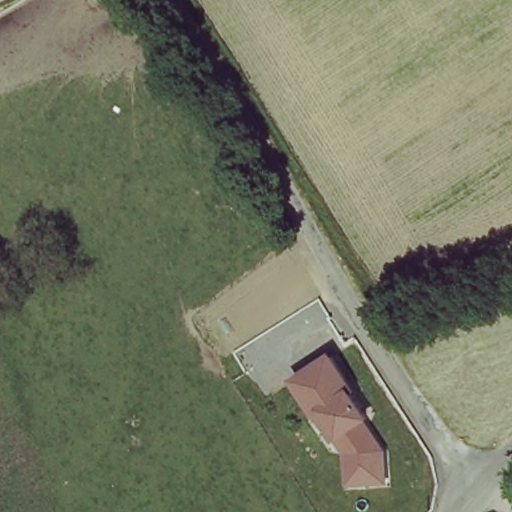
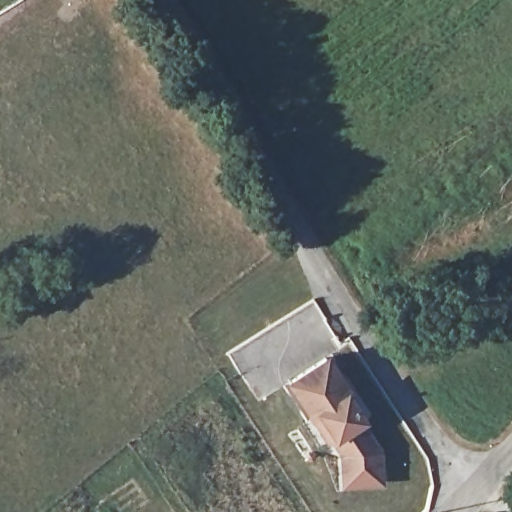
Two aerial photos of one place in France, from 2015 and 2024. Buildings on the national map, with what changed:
unchanged [(341,487),(339,454),(317,415),(308,418),(283,380),(321,355),(376,448),(378,480),(341,487)]

